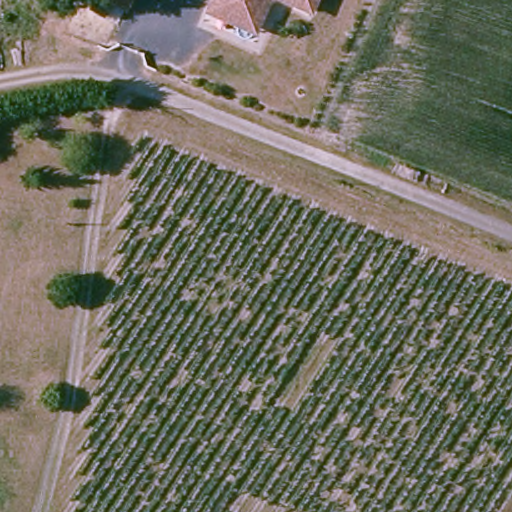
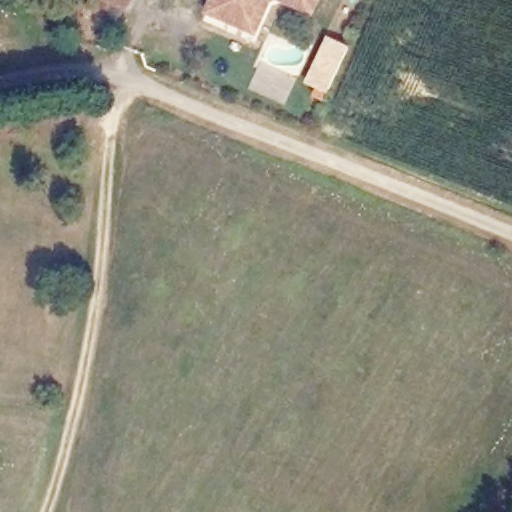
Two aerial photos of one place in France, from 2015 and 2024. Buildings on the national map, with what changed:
unchanged [(106,0),(127,0),(112,25),(97,15),(106,0)]
unchanged [(209,7),(212,0),(267,0),(261,15),(256,27),(209,7)]
unchanged [(315,10),(291,0),(319,0),(315,10)]
new [(327,93),(305,82),(327,35),(350,46),(327,93)]

